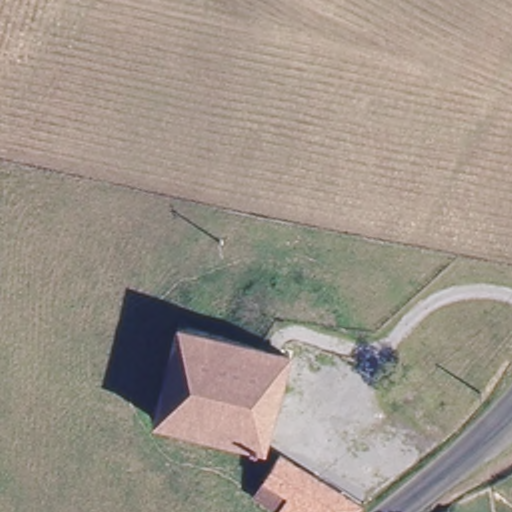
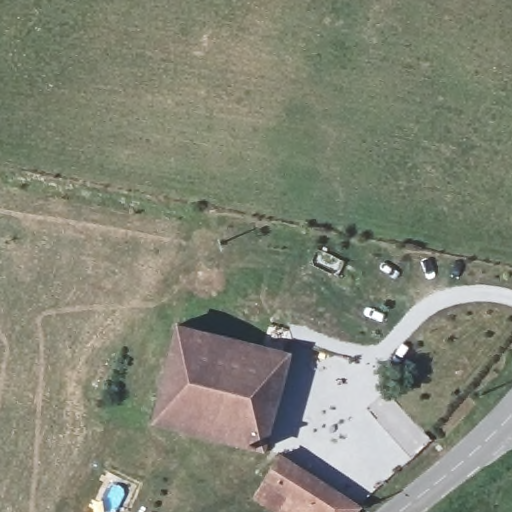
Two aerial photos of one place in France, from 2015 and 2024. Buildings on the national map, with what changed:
unchanged [(182,326),(240,340),(268,346),(289,352),(285,367),(261,445),(155,419),(182,326)]
unchanged [(278,445),(356,506),(349,512),(283,512),(249,485),(278,445)]

